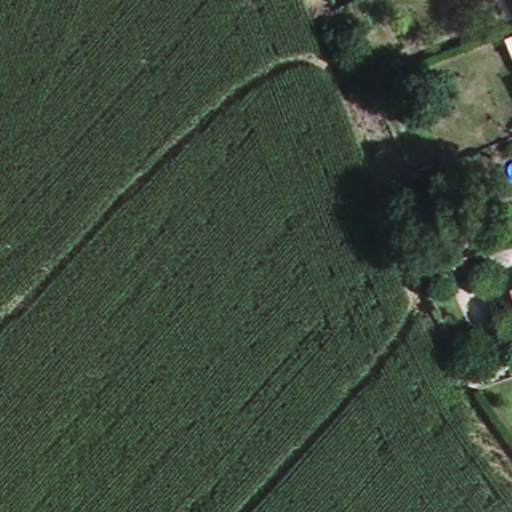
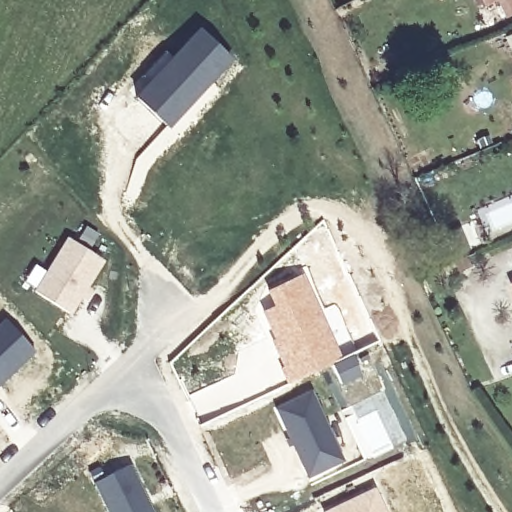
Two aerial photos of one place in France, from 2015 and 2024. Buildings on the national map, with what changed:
unchanged [(496,0),(512,0),(512,11),(504,15),(496,0)]
new [(139,85),(136,82),(165,51),(169,55),(199,26),(234,57),(169,127),(133,92),(139,85)]
new [(48,273),(70,239),(104,260),(70,313),(36,292),(38,290),(25,282),(36,265),(48,273)]
unchanged [(471,265),(459,271),(454,262),(467,257),(471,265)]
new [(264,311),(276,306),(269,291),(303,276),(343,361),(291,385),(284,368),(287,367),(281,353),(274,341),(278,338),(264,311)]
new [(5,317),(36,351),(0,385),(0,321),(5,317)]
new [(304,466),(277,409),(313,392),(345,461),(336,466),(309,477),(304,466)]
new [(131,466),(153,512),(109,512),(95,482),(131,466)]
new [(375,486),(388,512),(323,512),(322,511),(375,486)]

